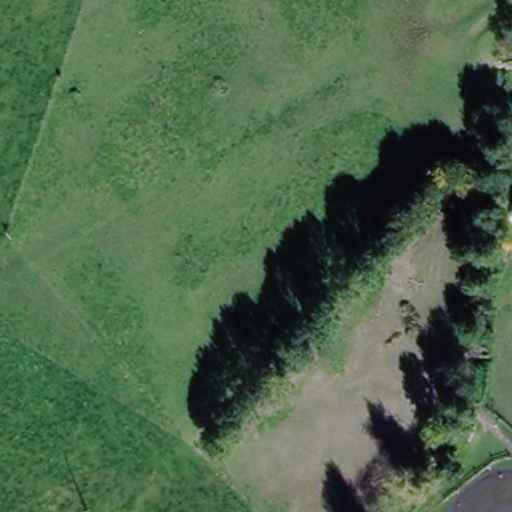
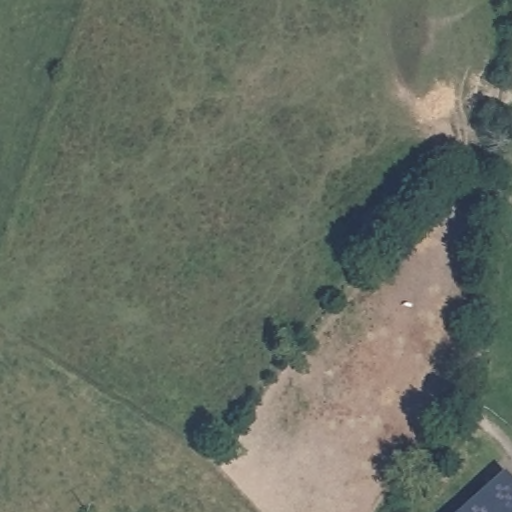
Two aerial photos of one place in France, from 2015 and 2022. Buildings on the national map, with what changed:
demolished [(512,216),(512,240),(503,242),(497,218),(512,216)]
new [(512,482),(512,512),(459,512),(504,472),(512,482)]

